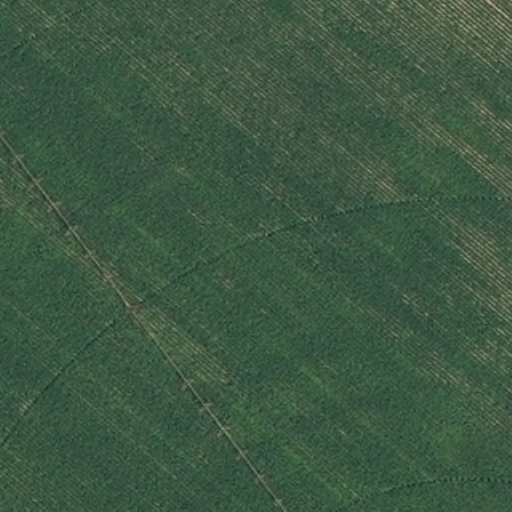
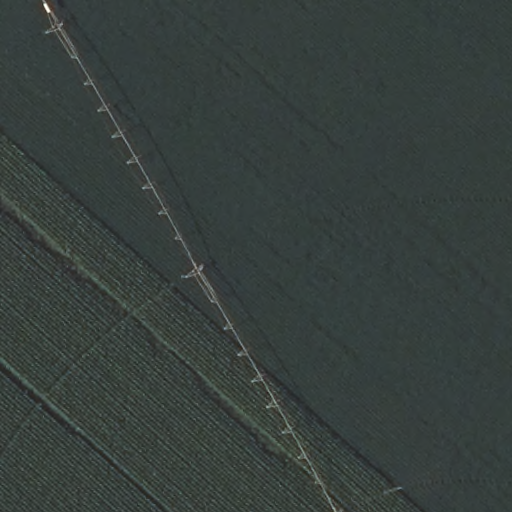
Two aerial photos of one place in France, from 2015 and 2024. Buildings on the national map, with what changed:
[]

